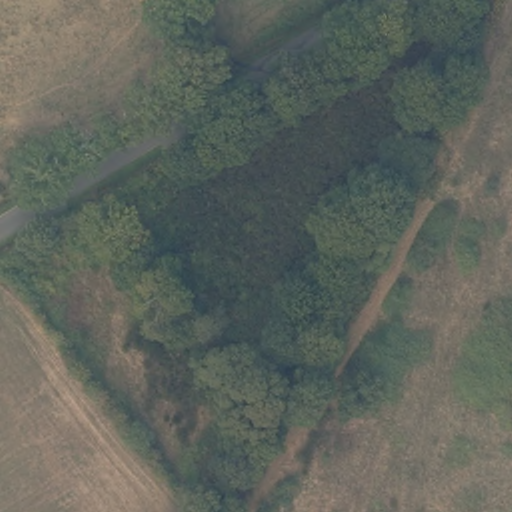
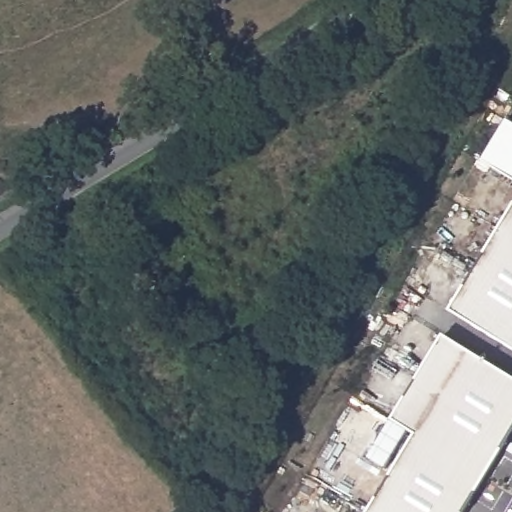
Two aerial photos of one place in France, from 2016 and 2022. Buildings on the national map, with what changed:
new [(480,162),(507,119),(512,122),(512,181),(480,162)]
new [(447,312),(512,206),(512,351),(447,312)]
new [(415,434),(392,420),(443,333),(512,376),(512,435),(465,512),(368,512),(415,434)]

